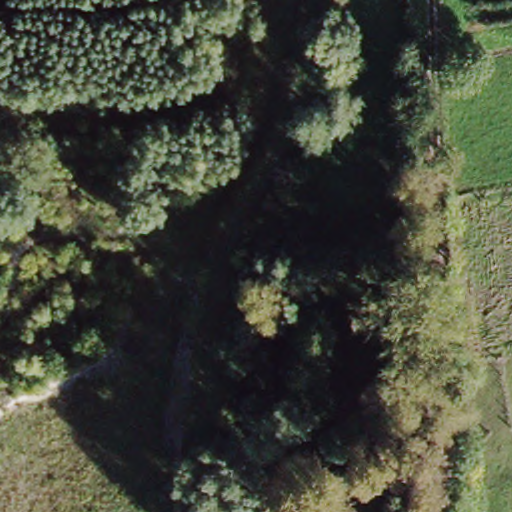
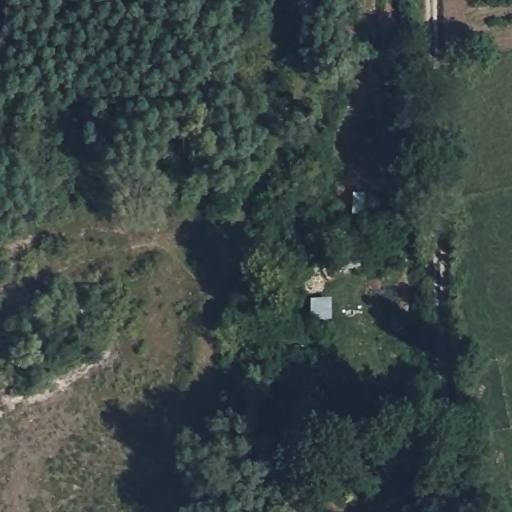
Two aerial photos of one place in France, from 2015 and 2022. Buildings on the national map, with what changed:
unchanged [(342,442),(329,409),(347,401),(355,417),(372,412),(375,435),(342,442)]

